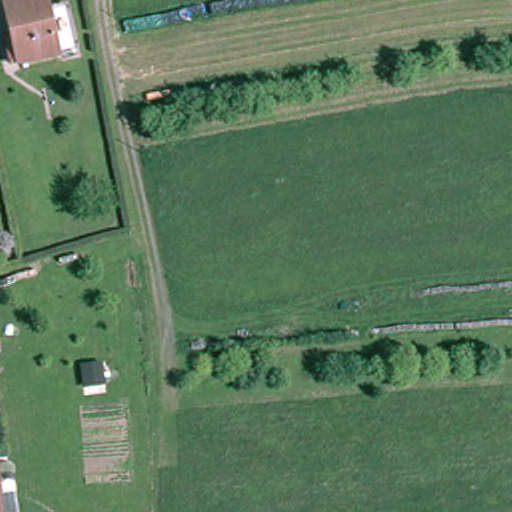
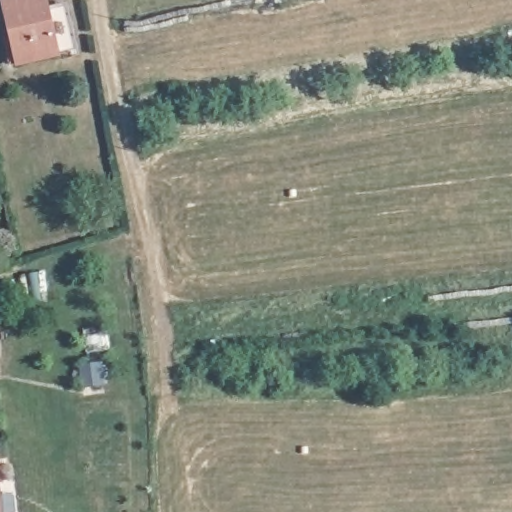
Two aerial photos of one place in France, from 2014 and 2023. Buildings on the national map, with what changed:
unchanged [(13,0),(50,0),(62,55),(23,63),(9,1),(13,0)]
unchanged [(0,512),(0,488),(3,512),(0,512)]

